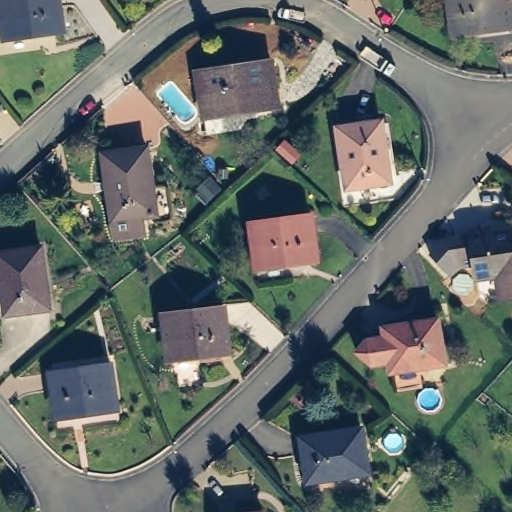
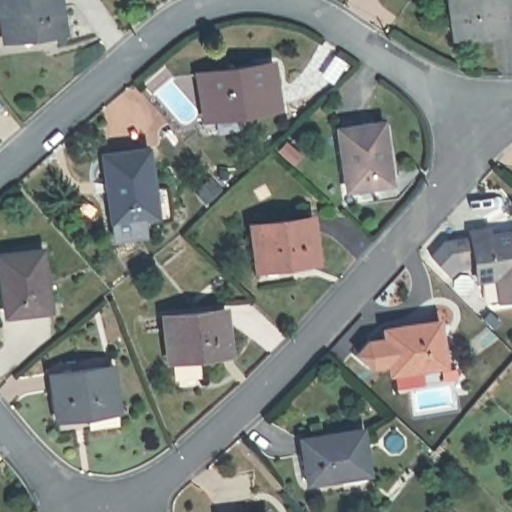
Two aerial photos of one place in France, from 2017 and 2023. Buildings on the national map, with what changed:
unchanged [(62,28),(3,37),(0,11),(0,0),(58,0),(62,28)]
unchanged [(390,0),(401,0),(397,5),(390,0)]
unchanged [(463,30),(459,0),(512,0),(512,25),(463,30)]
unchanged [(273,107),(203,117),(197,76),(268,65),(273,107)]
unchanged [(389,184),(345,190),(338,130),(380,125),(389,184)]
unchanged [(157,210),(145,212),(147,230),(118,234),(107,151),(148,145),(157,210)]
unchanged [(320,258),(260,264),(254,221),(314,213),(320,258)]
unchanged [(505,274),(485,277),(482,263),(468,265),(464,236),(478,234),(478,227),(497,225),(497,229),(512,227),(512,296),(508,297),(505,274)]
unchanged [(15,317),(6,256),(49,250),(58,310),(15,317)]
unchanged [(233,355),(172,361),(168,317),(228,310),(233,355)]
unchanged [(453,366),(401,374),(400,364),(381,366),(365,355),(375,342),(395,338),(395,330),(446,322),(453,366)]
unchanged [(116,411),(55,419),(50,375),(110,367),(116,411)]
unchanged [(376,469),(317,477),(310,435),(370,426),(376,469)]

